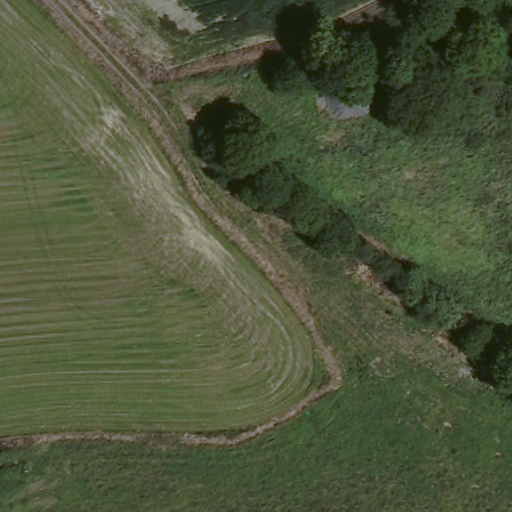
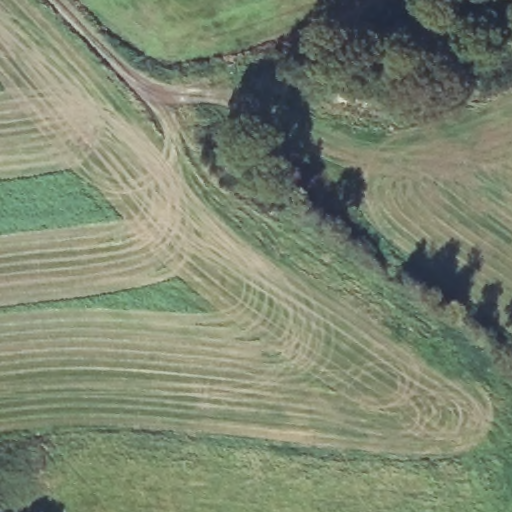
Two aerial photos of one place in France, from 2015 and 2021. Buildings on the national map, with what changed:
[]

